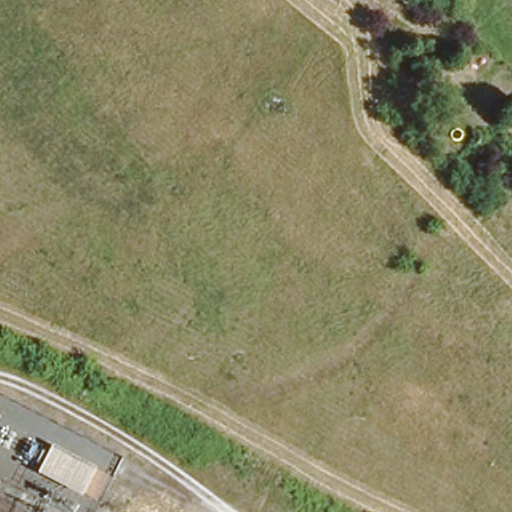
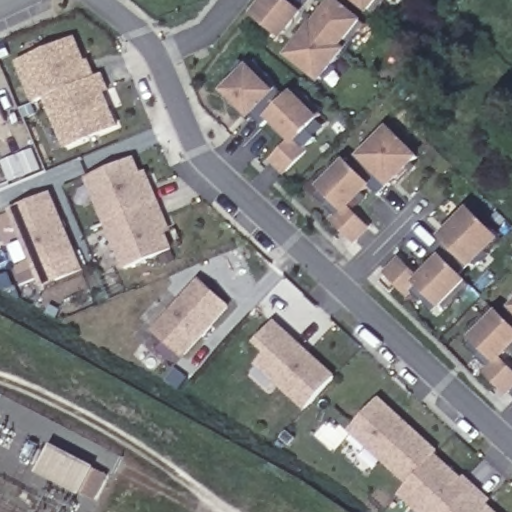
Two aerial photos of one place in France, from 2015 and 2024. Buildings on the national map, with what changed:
new [(251,12),(260,0),(286,0),(298,9),(279,34),(251,12)]
new [(320,79),(290,54),(313,25),(305,19),(310,13),(318,19),(334,0),(335,0),(365,23),(320,79)]
new [(359,0),(384,0),(374,12),(359,0)]
new [(102,73),(110,90),(105,93),(119,126),(64,149),(42,98),(32,102),(15,60),(74,36),(93,76),(102,73)]
new [(296,89),(322,112),(306,128),(315,137),(304,149),(305,150),(285,172),(272,159),(292,139),(270,117),(262,126),(225,89),(252,63),(287,99),(296,89)]
new [(0,127),(0,104),(9,124),(0,127)]
new [(347,206),(368,228),(354,240),(333,219),(335,218),(325,206),(333,197),(318,183),(343,157),(352,166),(390,128),(417,156),(379,195),(369,185),(347,206)]
new [(133,158),(145,187),(151,185),(164,215),(158,218),(170,248),(125,267),(87,177),(133,158)]
new [(32,267),(9,209),(52,192),(77,248),(32,267)]
new [(443,255),(431,248),(470,209),(498,236),(460,274),(470,283),(445,309),(430,294),(422,303),(410,291),(408,294),(386,273),(400,259),(420,280),(443,255)]
new [(228,307),(185,353),(156,326),(199,280),(228,307)]
new [(504,317),(512,309),(512,345),(500,358),(512,369),(512,386),(507,392),(485,370),(487,368),(476,357),(485,348),(470,333),(495,308),(504,317)]
new [(306,409),(257,364),(268,353),(256,343),(274,323),(335,378),(306,409)]
new [(349,431),(380,396),(439,451),(435,456),(407,484),(349,431)]
unchanged [(99,497),(37,468),(52,442),(107,472),(99,497)]
new [(400,492),(407,484),(435,456),(462,480),(465,478),(490,501),(487,504),(495,512),(422,512),(400,492)]

